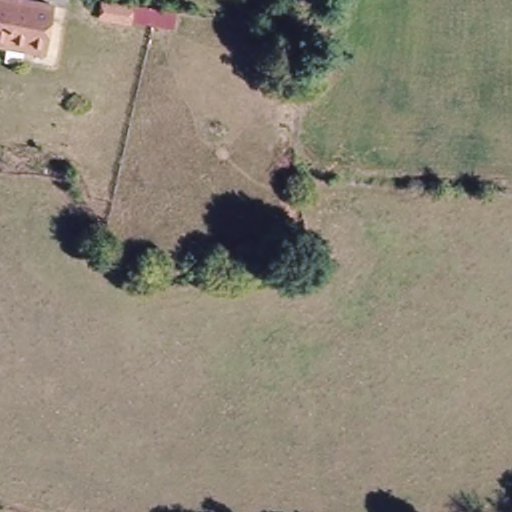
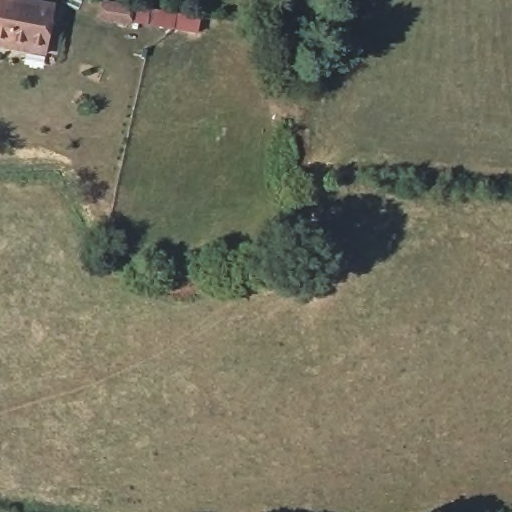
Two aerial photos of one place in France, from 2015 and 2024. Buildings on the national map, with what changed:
unchanged [(0,2),(51,11),(43,55),(7,48),(5,56),(0,56),(0,2)]
unchanged [(98,21),(100,2),(199,18),(196,36),(98,21)]

